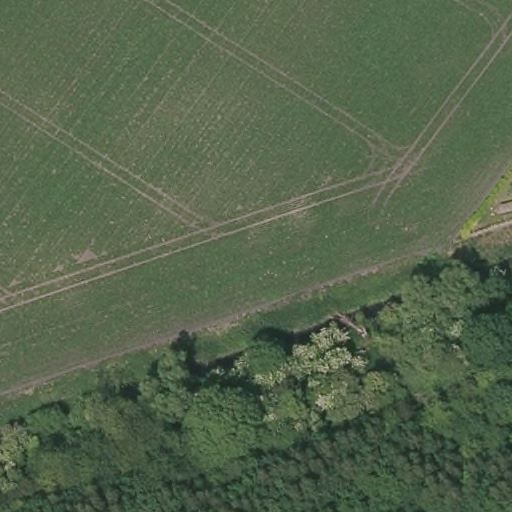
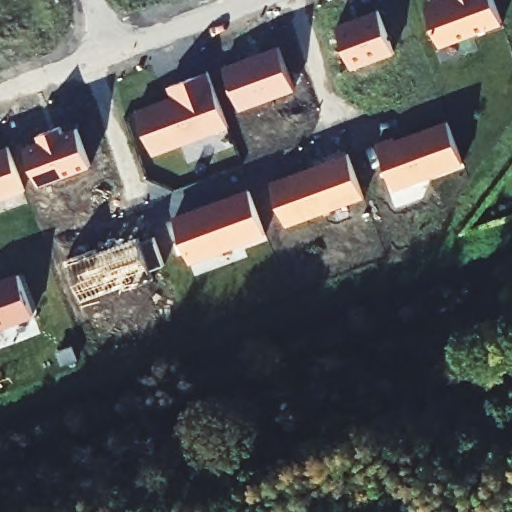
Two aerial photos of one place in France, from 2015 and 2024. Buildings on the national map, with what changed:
new [(503,24),(440,46),(425,5),(430,0),(496,0),(503,24)]
new [(395,54),(354,69),(337,24),(380,9),(395,54)]
new [(295,90),(239,110),(222,66),(279,45),(295,90)]
new [(229,126),(153,155),(134,110),(171,95),(168,86),(209,71),(229,126)]
new [(465,163),(395,189),(375,141),(395,134),(397,138),(449,119),(465,163)]
new [(92,165),(39,185),(24,145),(40,140),(37,135),(62,126),(65,132),(79,125),(92,165)]
new [(24,190),(0,199),(0,147),(8,144),(24,190)]
new [(365,197),(288,225),(272,180),(348,151),(365,197)]
new [(266,238),(192,264),(175,213),(250,189),(266,238)]
new [(144,240),(157,235),(167,265),(152,270),(154,278),(127,288),(125,282),(85,298),(69,256),(140,233),(144,240)]
new [(35,315),(0,329),(0,280),(19,271),(35,315)]

